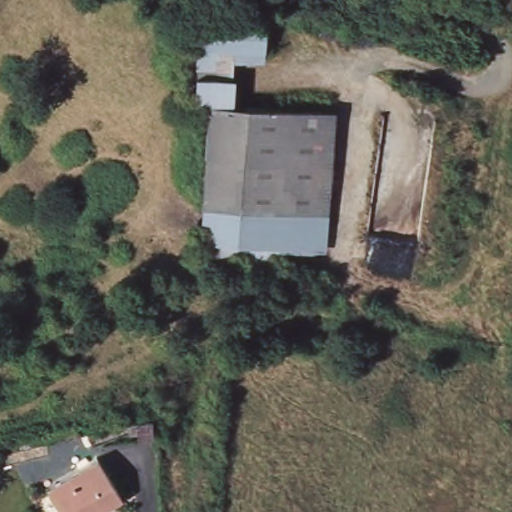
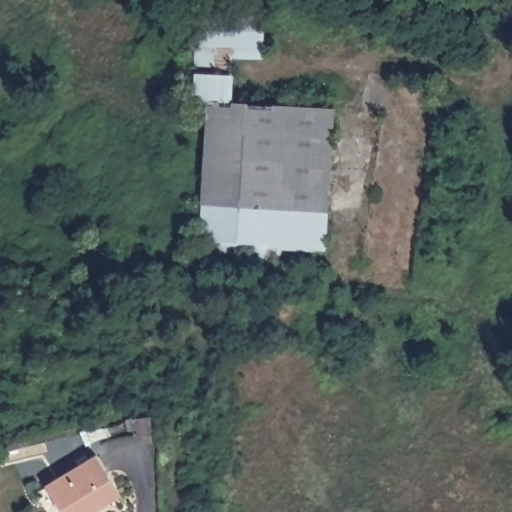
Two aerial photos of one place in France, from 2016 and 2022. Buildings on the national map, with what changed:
unchanged [(268,14),(269,45),(234,45),(207,45),(208,14),(268,14)]
unchanged [(193,107),(192,45),(207,45),(234,45),(234,76),(223,76),(224,107),(205,107),(193,107)]
unchanged [(224,107),(332,107),(331,209),(207,209),(205,107),(224,107)]
unchanged [(331,209),(330,242),(207,242),(207,209),(331,209)]
unchanged [(98,457),(122,500),(99,512),(65,512),(49,484),(98,457)]

